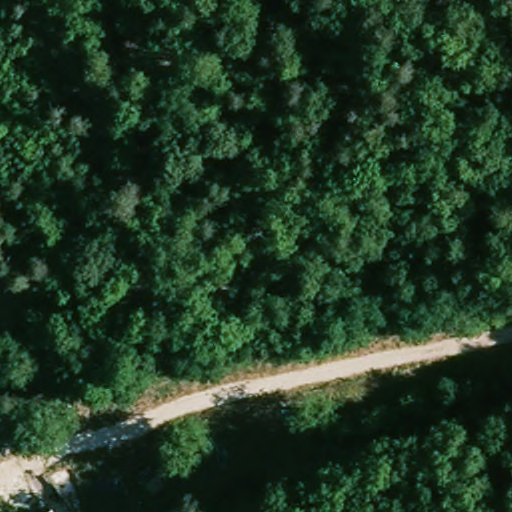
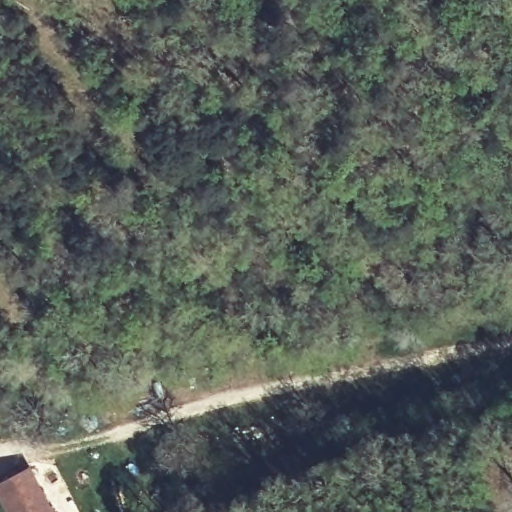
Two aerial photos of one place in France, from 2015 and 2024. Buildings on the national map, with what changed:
new [(9,512),(0,496),(0,481),(31,464),(56,512),(9,512)]
demolished [(53,493),(63,512),(27,512),(25,509),(53,493)]

